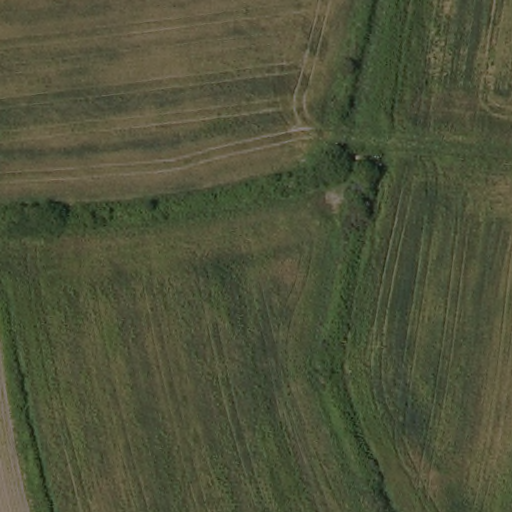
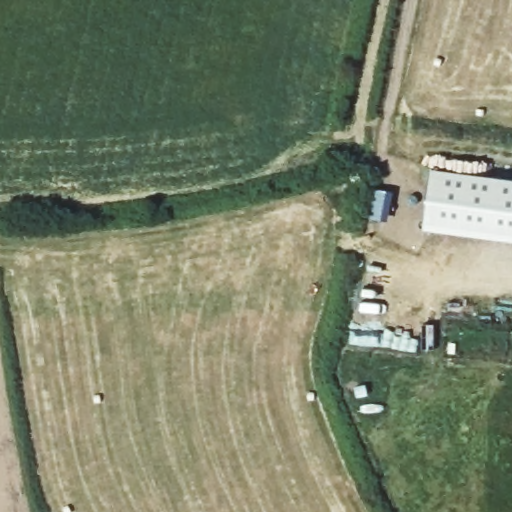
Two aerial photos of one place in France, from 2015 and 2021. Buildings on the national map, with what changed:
new [(434,180),(512,187),(512,249),(428,241),(434,180)]

